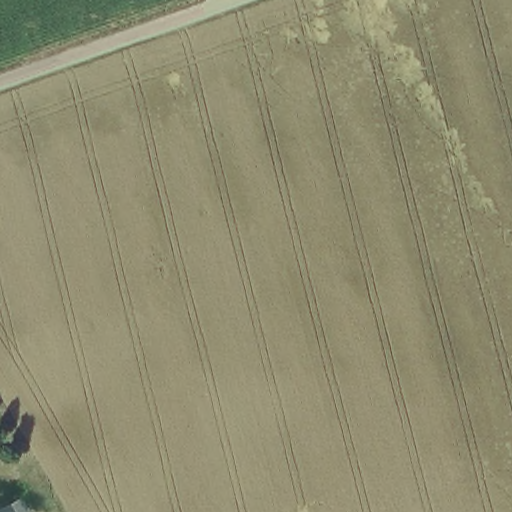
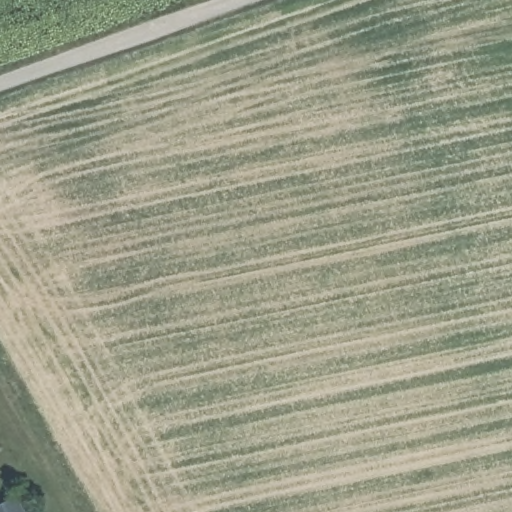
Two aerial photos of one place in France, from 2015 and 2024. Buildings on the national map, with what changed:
unchanged [(0,510),(16,501),(22,512),(0,512),(0,510)]

